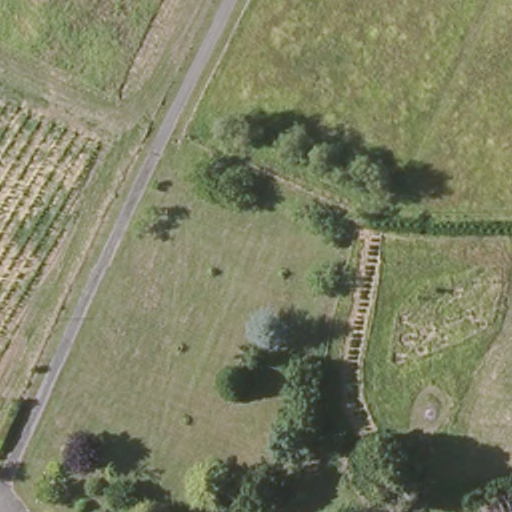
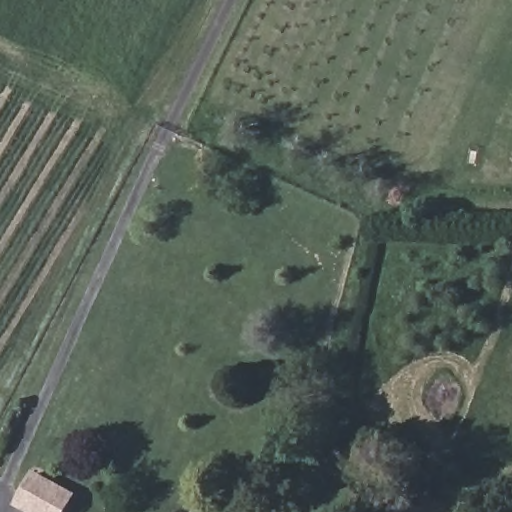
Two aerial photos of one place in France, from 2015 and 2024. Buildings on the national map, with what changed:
new [(67,512),(25,512),(14,505),(33,470),(77,494),(67,512)]

